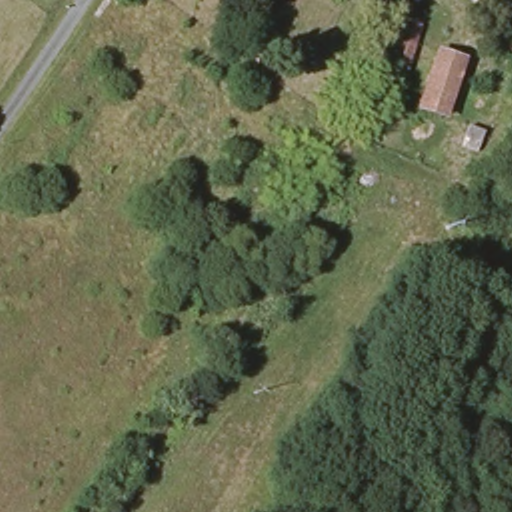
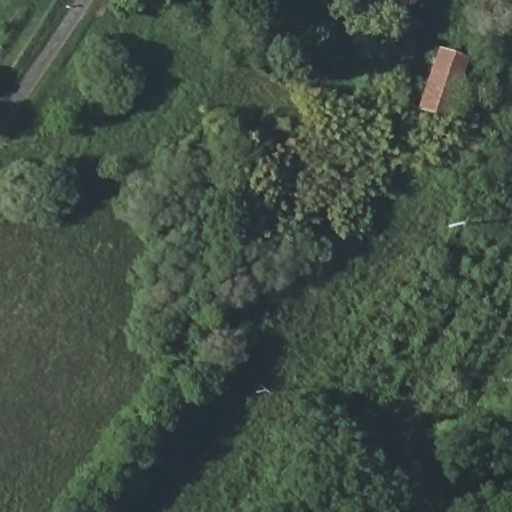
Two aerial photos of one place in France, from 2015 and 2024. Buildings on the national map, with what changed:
unchanged [(413,76),(411,101),(383,100),(389,70),(401,18),(426,28),(413,76)]
unchanged [(425,111),(442,55),(462,60),(445,116),(425,111)]
unchanged [(478,159),(463,151),(471,129),(486,136),(478,159)]

